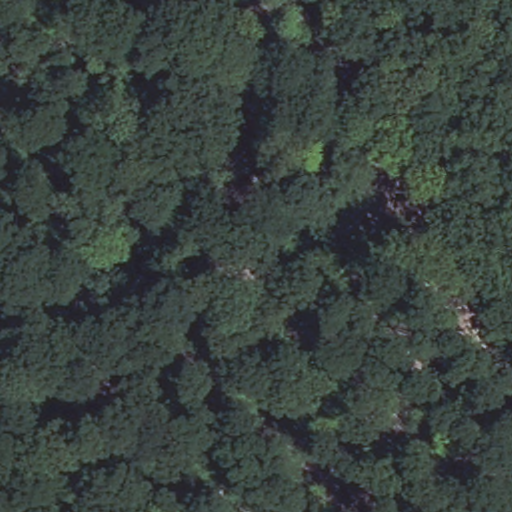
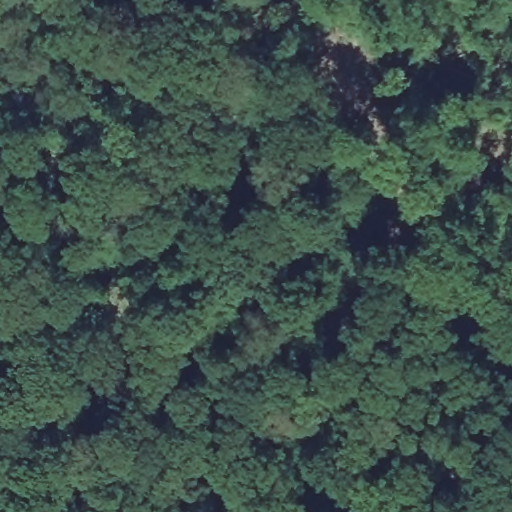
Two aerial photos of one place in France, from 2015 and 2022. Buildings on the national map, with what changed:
[]

